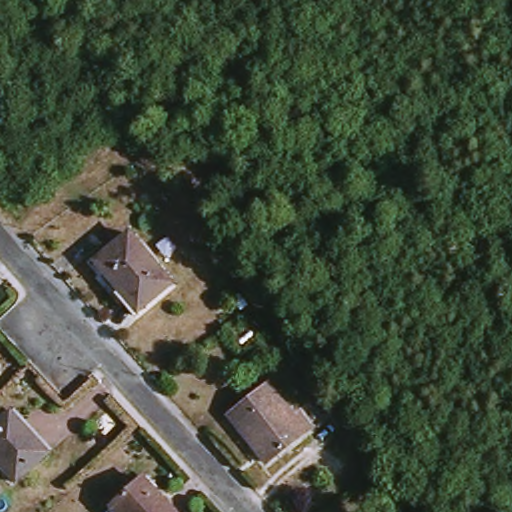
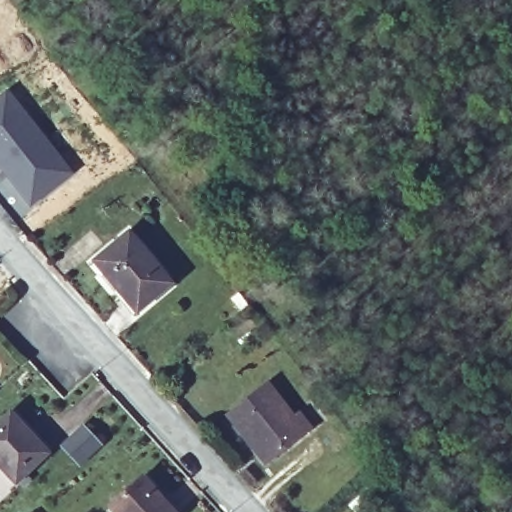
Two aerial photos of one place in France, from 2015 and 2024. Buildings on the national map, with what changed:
new [(3,92),(13,105),(31,126),(57,159),(69,174),(29,206),(5,177),(0,171),(0,95),(3,92)]
unchanged [(176,283),(145,308),(141,311),(123,290),(127,286),(105,260),(136,235),(137,236),(176,283)]
unchanged [(5,393),(0,398),(0,388),(5,393)]
unchanged [(298,418),(307,413),(316,426),(268,460),(237,418),(277,390),(298,418)]
unchanged [(55,453),(24,480),(0,454),(0,434),(21,416),(55,453)]
new [(80,427),(96,445),(76,463),(60,446),(80,427)]
unchanged [(125,512),(118,505),(150,475),(185,512),(125,512)]

